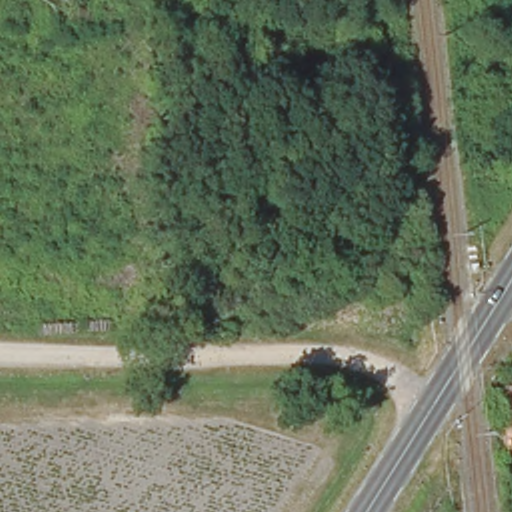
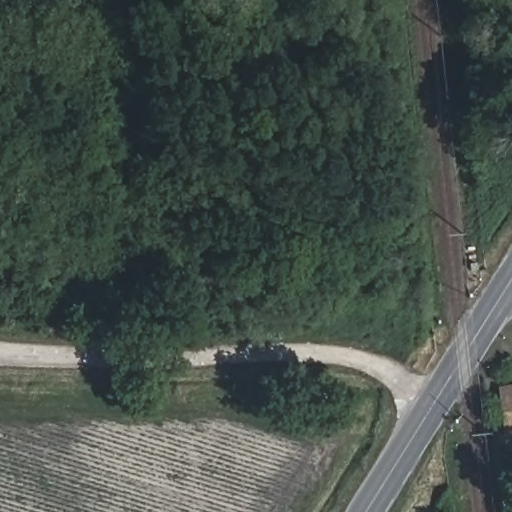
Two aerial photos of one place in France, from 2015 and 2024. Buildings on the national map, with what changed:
unchanged [(496,387),(512,386),(512,436),(503,437),(496,387)]

